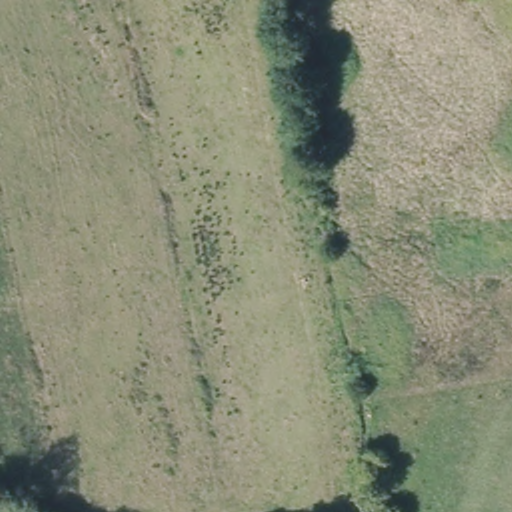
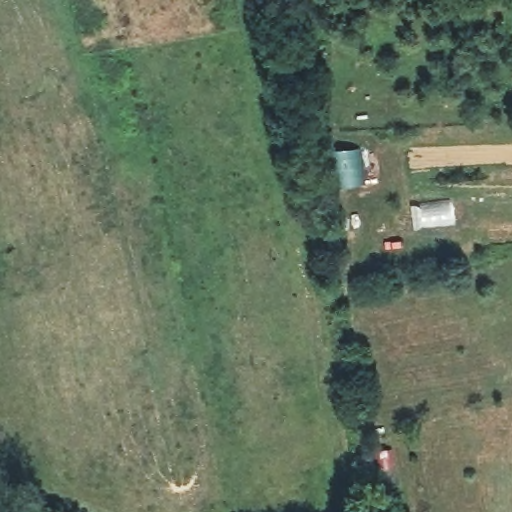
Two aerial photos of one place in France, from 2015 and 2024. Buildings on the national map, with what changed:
[]

